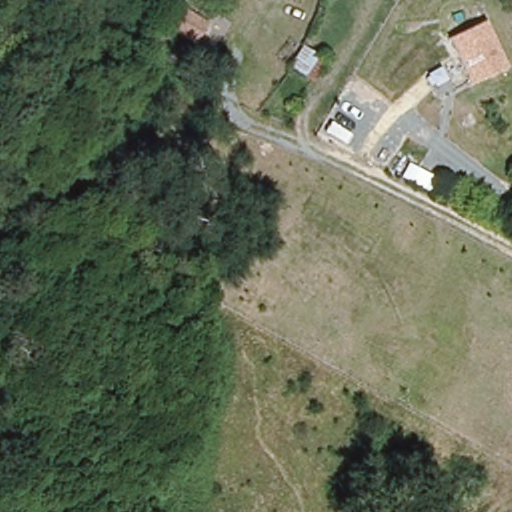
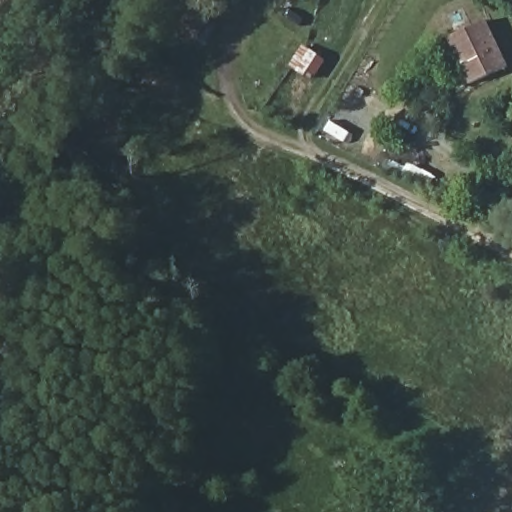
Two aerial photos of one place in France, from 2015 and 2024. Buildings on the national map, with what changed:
unchanged [(174,24),(184,9),(210,26),(201,41),(174,24)]
unchanged [(469,85),(448,36),(486,21),(507,69),(469,85)]
unchanged [(304,41),(329,58),(315,80),(290,66),(304,41)]
unchanged [(472,479),(481,470),(488,476),(479,486),(472,479)]

